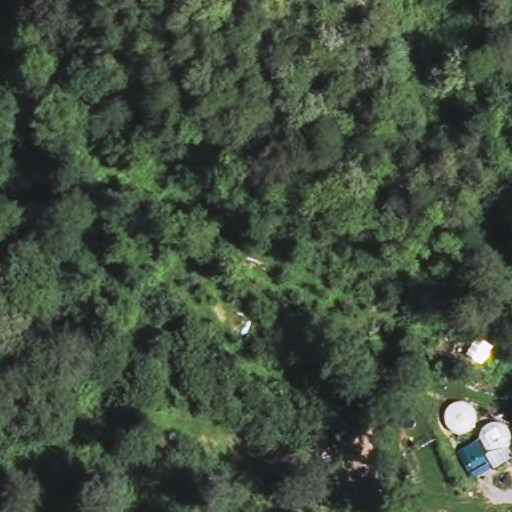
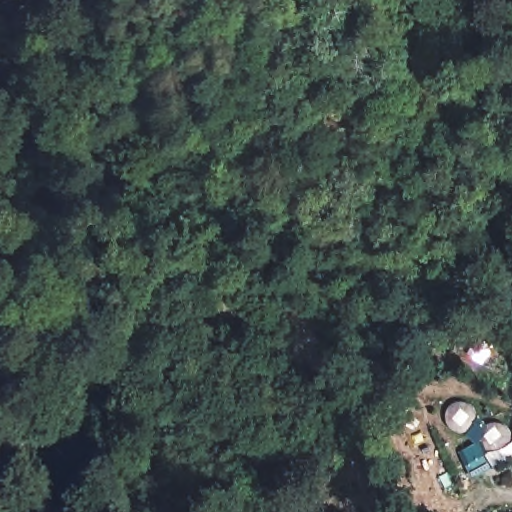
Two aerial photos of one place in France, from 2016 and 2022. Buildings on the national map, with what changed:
unchanged [(512,441),(512,463),(475,479),(460,450),(477,438),(478,432),(483,427),(492,424),(504,421),(512,441)]

